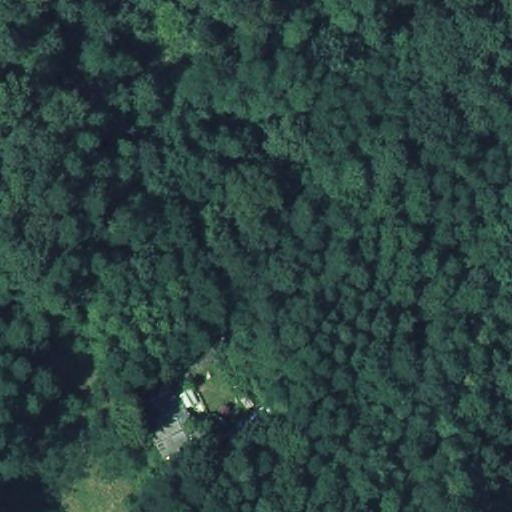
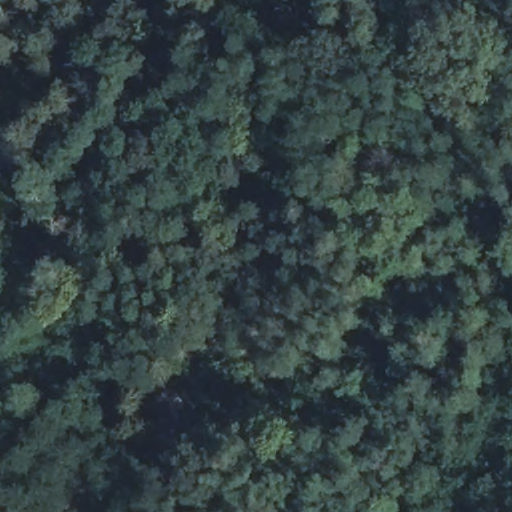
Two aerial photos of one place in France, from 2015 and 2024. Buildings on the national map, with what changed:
unchanged [(162,396),(158,386),(167,382),(172,391),(162,396)]
unchanged [(158,427),(152,431),(148,421),(145,413),(148,412),(140,395),(158,386),(162,396),(170,412),(173,422),(158,427)]

